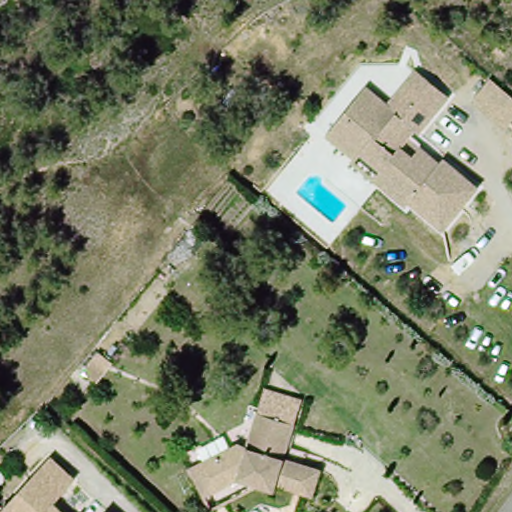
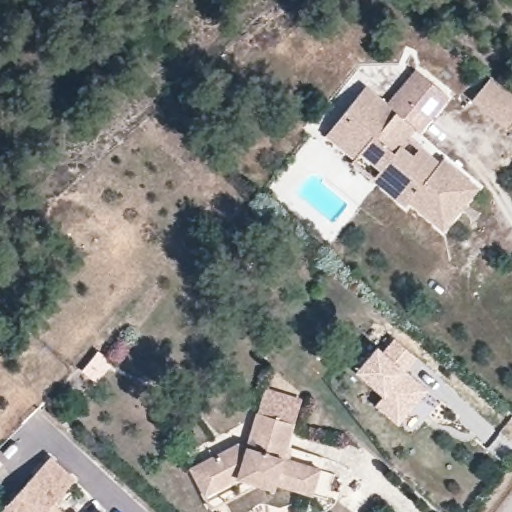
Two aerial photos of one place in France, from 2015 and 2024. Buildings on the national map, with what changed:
unchanged [(446,160),(479,189),(444,230),(413,203),(409,208),(383,186),(382,168),(362,153),(362,152),(357,158),(331,135),(348,115),(369,89),(389,106),(418,71),(427,78),(452,95),(423,134),(418,130),(410,139),(435,161),(441,166),(446,160)]
unchanged [(489,80),(512,101),(512,121),(505,131),(470,103),(489,80)]
new [(383,349),(395,337),(417,358),(406,370),(429,390),(397,425),(374,405),(381,396),(355,371),(377,344),(383,349)]
new [(96,382),(83,372),(99,352),(112,362),(96,382)]
unchanged [(199,466),(237,443),(248,443),(257,412),(264,388),(300,396),(292,422),(285,457),(303,461),(318,465),(311,493),(295,489),(276,483),(273,492),(259,488),(240,482),(219,494),(206,503),(188,473),(199,466)]
unchanged [(75,481),(55,508),(60,512),(4,512),(50,460),(75,481)]

